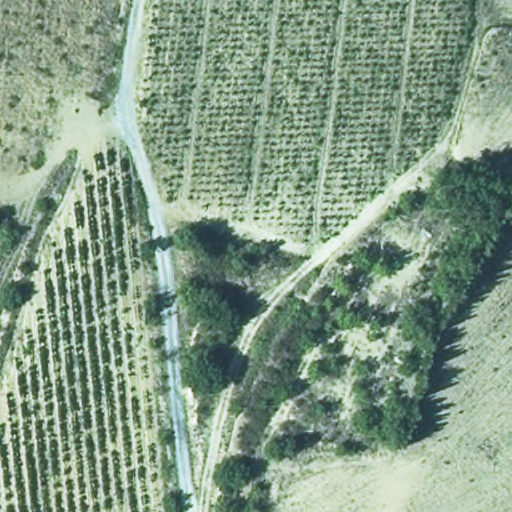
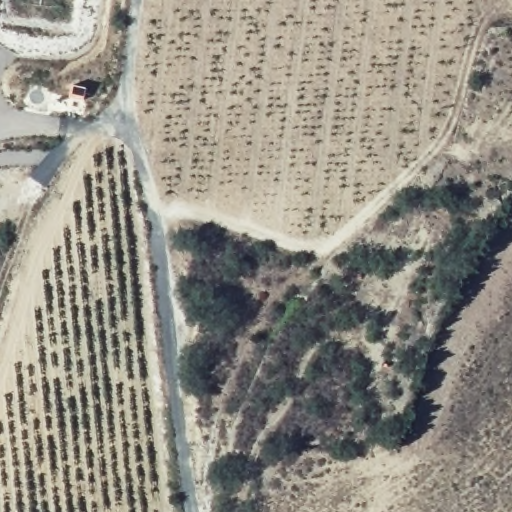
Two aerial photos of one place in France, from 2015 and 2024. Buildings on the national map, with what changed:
[]

